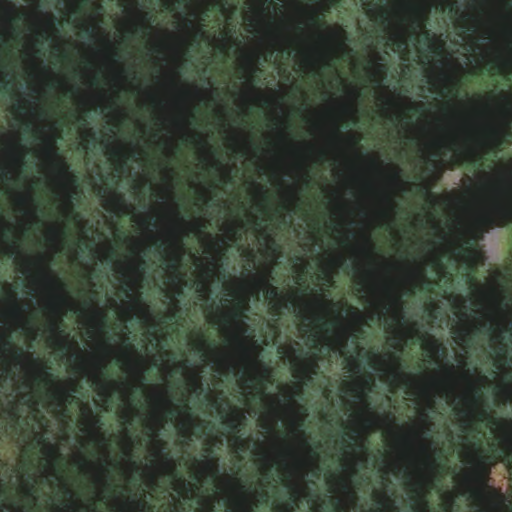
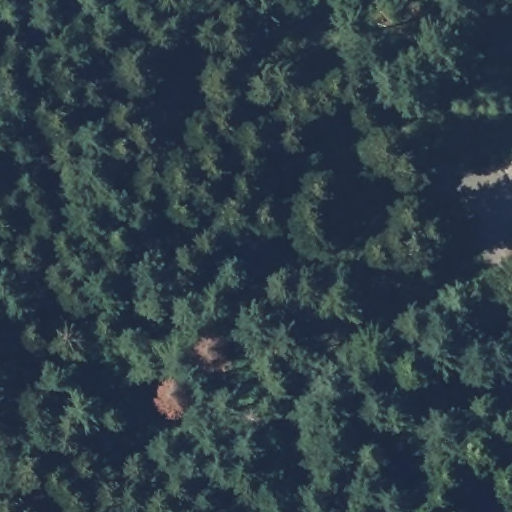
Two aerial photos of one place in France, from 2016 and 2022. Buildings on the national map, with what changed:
[]

